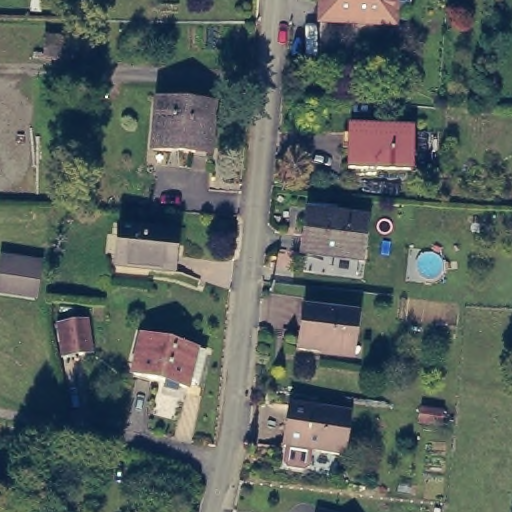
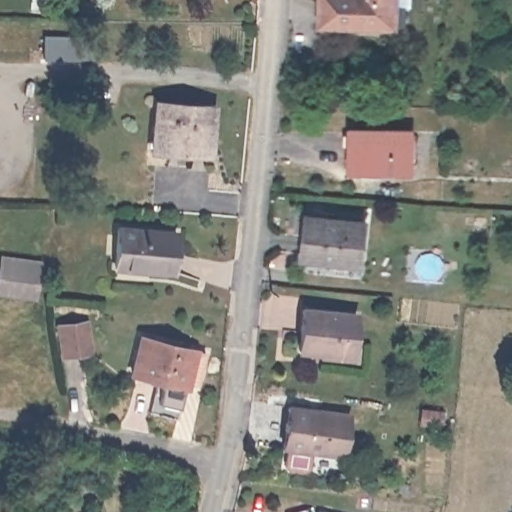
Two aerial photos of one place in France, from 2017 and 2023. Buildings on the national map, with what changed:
unchanged [(400,29),(313,23),(315,0),(401,0),(400,29)]
unchanged [(220,102),(216,159),(148,153),(153,97),(220,102)]
unchanged [(412,178),(345,174),(347,124),(415,126),(412,178)]
unchanged [(365,265),(300,259),(303,207),(370,216),(365,265)]
unchanged [(177,227),(175,277),(113,274),(117,221),(177,227)]
unchanged [(3,249),(40,259),(35,297),(0,291),(0,265),(3,249)]
unchanged [(355,359),(294,354),(298,303),(360,309),(355,359)]
unchanged [(52,322),(88,314),(94,352),(65,357),(52,322)]
unchanged [(192,391),(127,377),(139,331),(203,348),(192,391)]
unchanged [(350,409),(342,461),(278,454),(287,400),(350,409)]
unchanged [(317,512),(317,510),(325,512),(317,512)]

